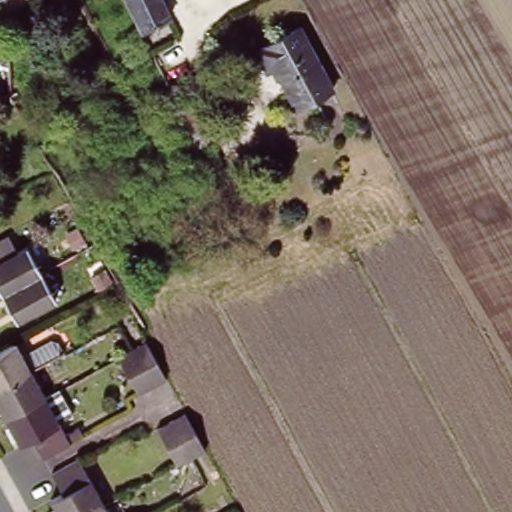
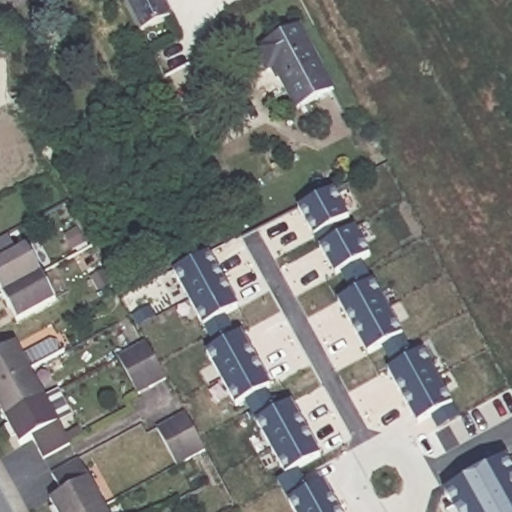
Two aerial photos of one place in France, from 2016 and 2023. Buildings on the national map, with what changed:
unchanged [(170,14),(168,15),(142,27),(129,0),(164,0),(170,14)]
unchanged [(282,64),(274,67),(262,47),(307,24),(340,86),(304,105),(282,64)]
new [(352,266),(334,276),(319,249),(312,238),(297,211),(334,192),(348,218),(332,227),(339,237),(355,229),(370,256),(376,267),(382,277),(397,305),(352,329),(337,302),(364,287),(358,277),(352,266)]
unchanged [(1,295),(0,293),(0,262),(26,248),(40,274),(1,295)]
new [(210,254),(225,281),(189,301),(173,272),(210,254)]
unchanged [(55,300),(16,322),(1,295),(40,274),(55,300)]
new [(215,348),(210,338),(203,327),(189,301),(225,281),(239,307),(223,315),(230,327),(235,337),(215,348)]
new [(391,342),(367,356),(352,329),(397,305),(411,331),(422,351),(437,378),(402,398),(387,371),(402,362),(391,342)]
new [(257,361),(222,380),(207,352),(242,333),(257,361)]
unchanged [(57,341),(62,342),(68,352),(35,370),(0,388),(0,355),(20,343),(28,357),(57,341)]
unchanged [(142,393),(122,357),(135,349),(150,342),(170,377),(155,386),(142,393)]
new [(272,387),(237,406),(222,380),(257,361),(272,387)]
unchanged [(49,396),(10,417),(0,400),(0,388),(35,370),(49,396)]
new [(438,429),(431,416),(417,425),(402,398),(437,378),(452,405),(460,418),(438,429)]
new [(306,431),(272,449),(257,422),(252,412),(246,401),(265,390),(272,401),(277,411),(291,403),(306,431)]
unchanged [(75,443),(48,457),(37,438),(25,445),(10,417),(49,396),(75,443)]
unchanged [(190,414),(210,451),(195,458),(182,466),(162,429),(175,421),(190,414)]
new [(295,512),(289,501),(283,490),(277,480),(287,475),(272,449),(306,431),(320,457),(297,469),(303,479),(310,490),(324,482),(340,510),(335,512),(295,512)]
unchanged [(62,493),(52,475),(79,460),(103,506),(92,512),(56,512),(50,500),(62,493)]
unchanged [(107,512),(92,512),(103,506),(107,512)]
new [(341,512),(335,512),(340,510),(341,512)]

